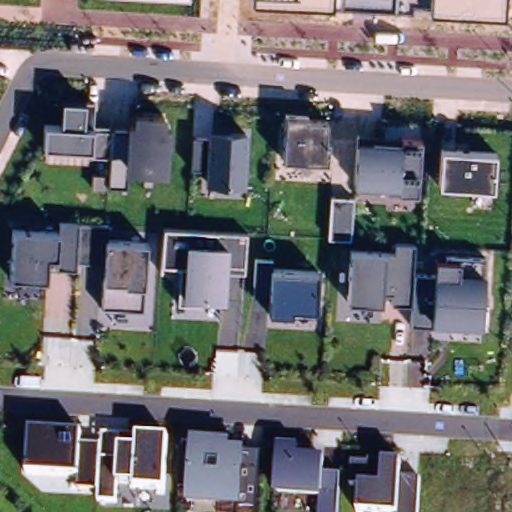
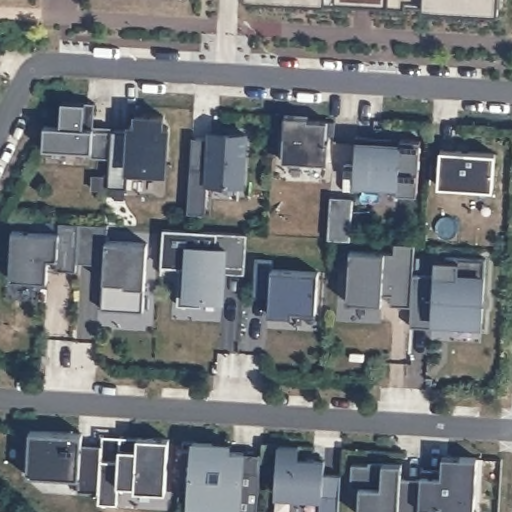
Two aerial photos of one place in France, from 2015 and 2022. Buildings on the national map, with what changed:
unchanged [(501,5),(426,2),(371,0),(501,0),(501,5)]
unchanged [(90,163),(47,160),(45,148),(46,124),(60,124),(62,100),(85,101),(96,101),(95,124),(112,126),(112,129),(110,156),(90,156),(90,163)]
unchanged [(133,123),(134,111),(167,113),(166,125),(172,125),(169,175),(127,173),(127,188),(109,186),(110,156),(112,129),(126,129),(127,123),(133,123)]
unchanged [(327,117),(325,142),(330,142),(329,163),(282,160),(285,114),(327,117)]
unchanged [(247,187),(205,184),(207,171),(192,170),(194,138),(197,136),(209,136),(210,129),(250,132),(247,187)]
unchanged [(402,141),(402,137),(420,138),(417,192),(399,191),(399,187),(355,184),(357,138),(402,141)]
unchanged [(497,154),(494,189),(439,185),(441,149),(497,154)]
unchanged [(354,197),(350,240),(327,239),(330,195),(354,197)]
unchanged [(48,268),(47,280),(12,278),(14,228),(60,231),(60,221),(80,223),(77,270),(48,268)]
unchanged [(144,309),(105,307),(105,281),(105,272),(77,270),(80,223),(109,224),(107,240),(146,243),(144,287),(144,309)]
unchanged [(227,300),(201,299),(201,305),(178,303),(180,265),(185,265),(187,242),(217,244),(217,231),(247,233),(245,273),(228,272),(227,300)]
unchanged [(412,305),(392,304),(393,291),(382,290),(382,302),(348,300),(352,250),(385,253),(395,253),(395,242),(415,244),(415,273),(412,305)]
unchanged [(447,259),(447,253),(485,256),(485,273),(483,326),(433,323),(411,324),(412,305),(415,273),(435,274),(437,258),(447,259)]
unchanged [(254,297),(255,259),(272,260),(272,268),(318,271),(317,309),(292,307),(292,314),(270,312),(270,297),(254,297)]
unchanged [(101,491),(77,490),(77,478),(30,475),(32,427),(82,430),(82,442),(103,444),(101,491)]
unchanged [(192,439),(232,442),(232,449),(247,451),(250,434),(265,435),(264,452),(259,512),(220,512),(220,507),(189,505),(192,439)]
unchanged [(139,436),(170,438),(167,493),(136,490),(136,485),(119,484),(118,503),(100,502),(101,491),(103,444),(104,435),(122,436),(139,436)]
unchanged [(342,472),(340,512),(320,512),(320,500),(277,497),(279,454),(280,443),(300,444),(300,456),(325,458),(325,471),(342,472)]
new [(473,512),(418,512),(420,477),(420,466),(422,466),(440,467),(440,479),(442,454),(477,456),(473,512)]
unchanged [(353,458),(384,457),(402,458),(400,475),(420,477),(418,512),(361,512),(362,484),(352,484),(353,458)]

